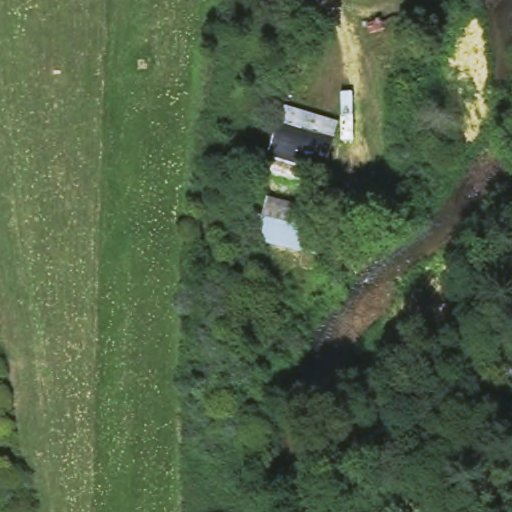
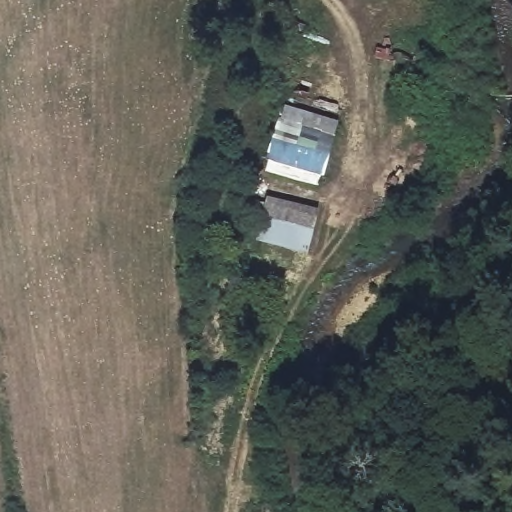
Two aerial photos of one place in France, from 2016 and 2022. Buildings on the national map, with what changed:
unchanged [(340,121),(332,166),(271,151),(283,105),(340,121)]
unchanged [(322,206),(314,252),(257,241),(266,195),(322,206)]

